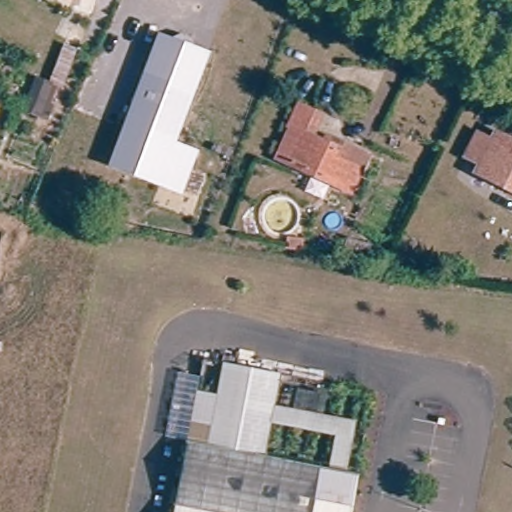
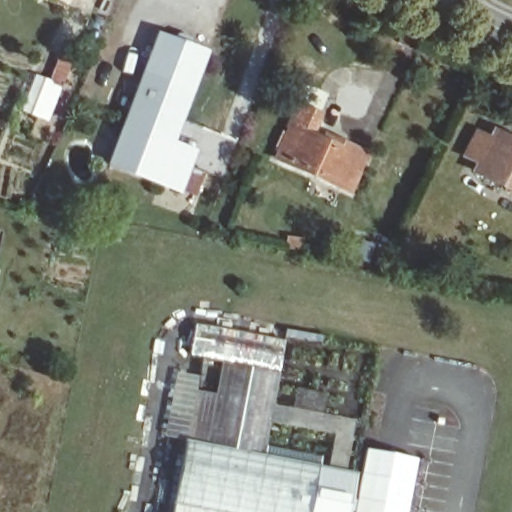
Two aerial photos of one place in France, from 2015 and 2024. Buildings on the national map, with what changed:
unchanged [(175,41),(184,36),(195,41),(201,52),(211,56),(173,150),(176,151),(196,159),(182,194),(161,186),(111,165),(164,37),(175,41)]
unchanged [(26,111),(39,80),(56,87),(44,118),(26,111)]
unchanged [(319,139),(334,145),(336,139),(370,154),(355,188),(298,164),(287,159),(299,130),(292,127),(301,105),(321,113),(328,116),(319,139)]
unchanged [(485,171),(489,163),(477,158),(489,135),(501,141),(506,132),(512,135),(512,185),(485,171)]
unchanged [(202,355),(372,387),(357,470),(187,437),(202,355)]
unchanged [(349,512),(172,512),(187,437),(357,470),(349,512)]
new [(419,458),(409,512),(355,512),(367,449),(419,458)]

